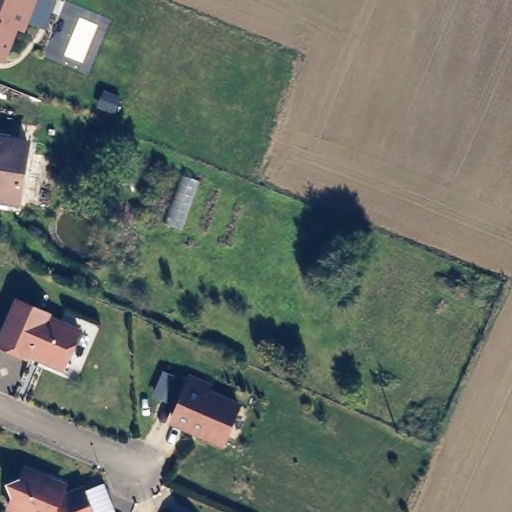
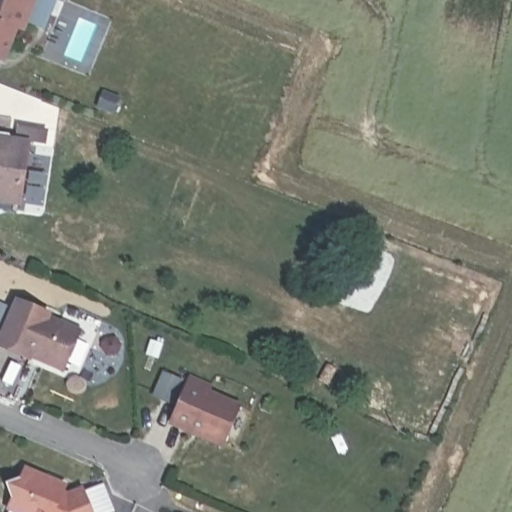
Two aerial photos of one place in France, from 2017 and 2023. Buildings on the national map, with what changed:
unchanged [(21,33),(13,30),(0,64),(0,0),(32,0),(21,33)]
unchanged [(17,195),(0,193),(0,132),(25,136),(17,195)]
unchanged [(63,372),(45,364),(43,358),(33,354),(30,361),(0,348),(0,343),(17,303),(50,317),(48,319),(80,333),(63,372)]
unchanged [(211,389),(208,395),(240,408),(222,447),(197,436),(199,432),(173,421),(190,380),(211,389)]
unchanged [(7,484),(23,478),(27,466),(70,486),(83,485),(95,512),(9,512),(15,499),(7,484)]

